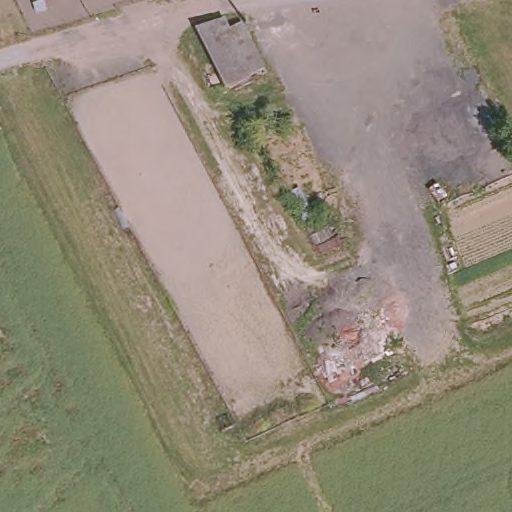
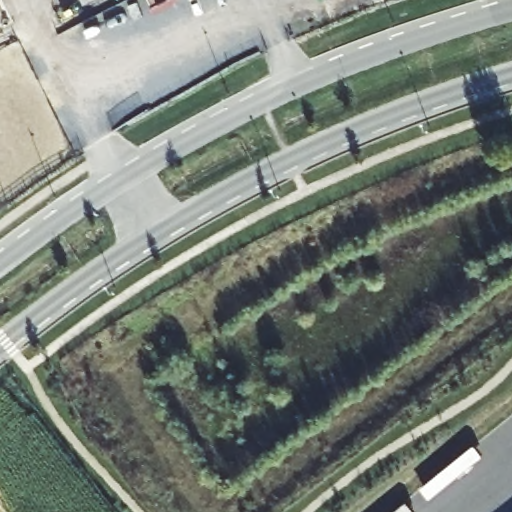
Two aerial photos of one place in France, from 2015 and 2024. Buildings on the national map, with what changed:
demolished [(248,19),(270,62),(265,64),(230,82),(198,22),(228,12),(235,25),(244,21),(248,19)]

